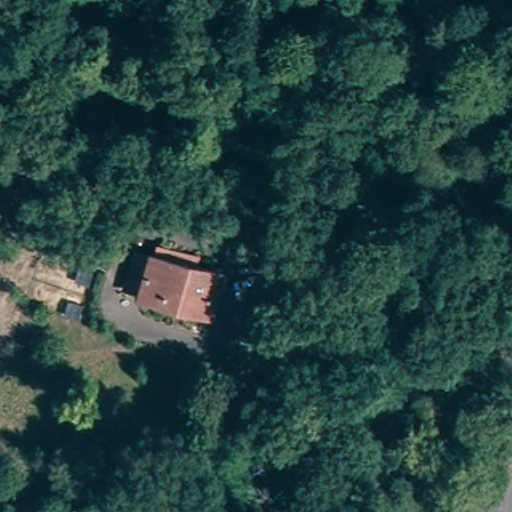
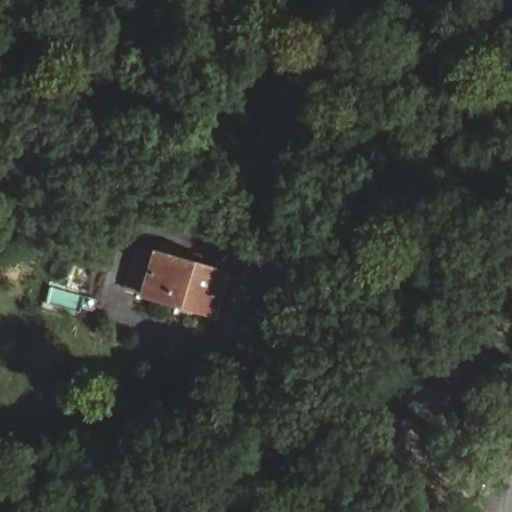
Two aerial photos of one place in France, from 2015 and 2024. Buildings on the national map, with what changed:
unchanged [(103,175),(90,200),(66,188),(79,163),(103,175)]
unchanged [(155,307),(136,302),(149,260),(167,265),(172,267),(175,256),(214,267),(210,278),(234,284),(222,326),(155,307)]

